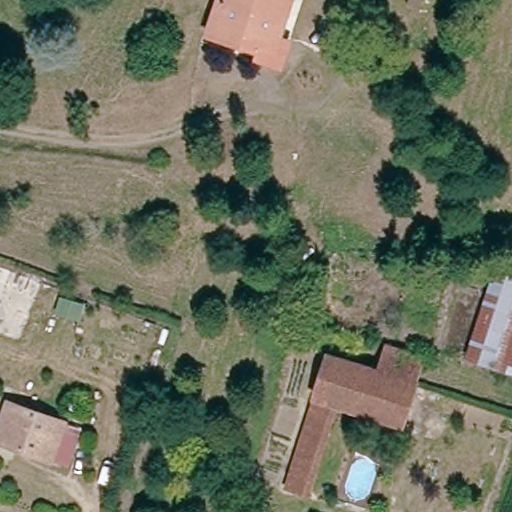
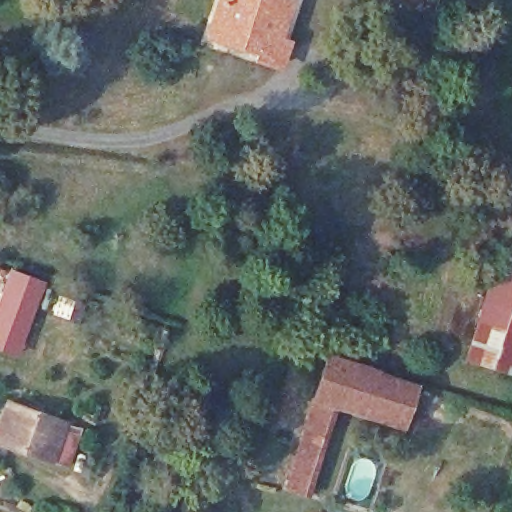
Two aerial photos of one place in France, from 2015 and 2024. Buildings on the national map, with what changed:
unchanged [(270,56),(211,36),(216,19),(222,0),(287,0),(278,30),(293,37),(286,61),(270,56)]
unchanged [(406,6),(409,0),(424,0),(420,11),(406,6)]
unchanged [(512,266),(512,369),(468,353),(500,261),(512,266)]
new [(46,280),(19,357),(0,350),(0,294),(10,267),(46,280)]
unchanged [(351,406),(322,397),(336,357),(337,352),(345,331),(363,337),(427,358),(420,380),(406,423),(351,406)]
unchanged [(349,412),(341,408),(333,431),(327,428),(306,490),(293,485),(322,397),(351,406),(349,412)]
unchanged [(63,430),(81,436),(72,468),(0,445),(0,430),(8,400),(67,418),(63,430)]

